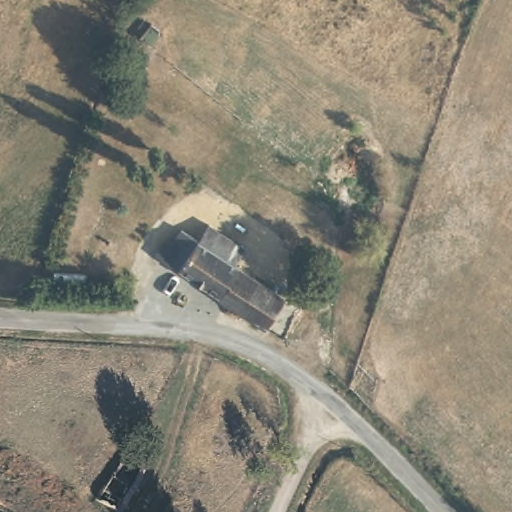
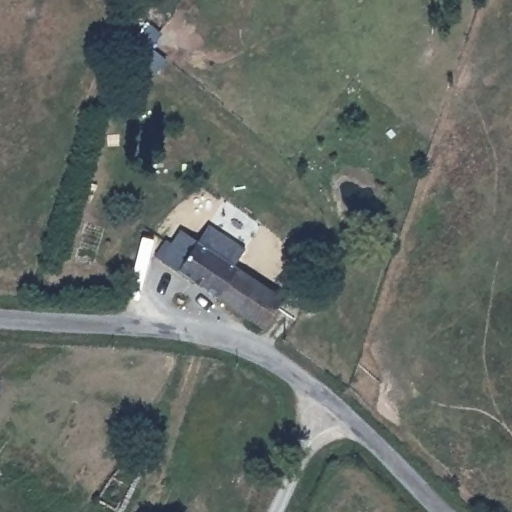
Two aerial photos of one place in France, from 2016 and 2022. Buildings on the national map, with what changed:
unchanged [(176,225),(195,237),(205,221),(241,246),(232,262),(285,297),(267,325),(157,254),(176,225)]

